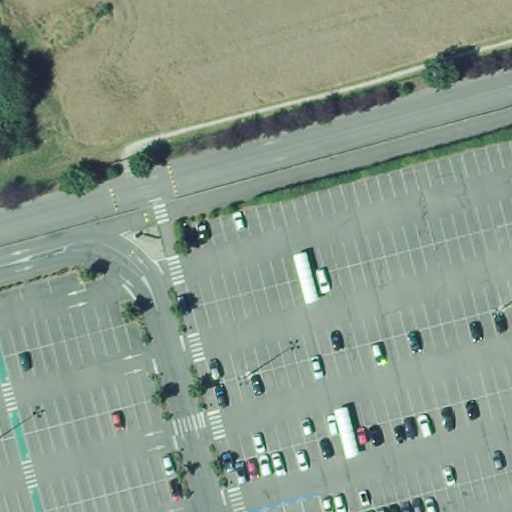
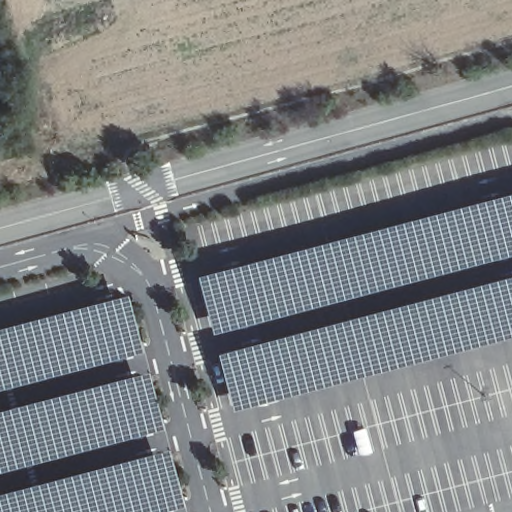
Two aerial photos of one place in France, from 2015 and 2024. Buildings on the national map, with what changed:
new [(512,193),(512,254),(214,332),(199,275),(512,193)]
new [(512,275),(512,336),(233,410),(218,352),(512,275)]
new [(143,352),(0,389),(0,328),(128,294),(143,352)]
new [(164,428),(0,472),(0,410),(149,371),(164,428)]
new [(0,493),(170,448),(185,506),(162,512),(0,512),(0,493)]

